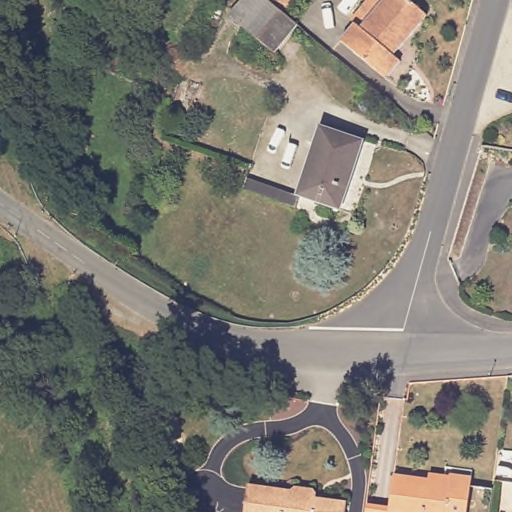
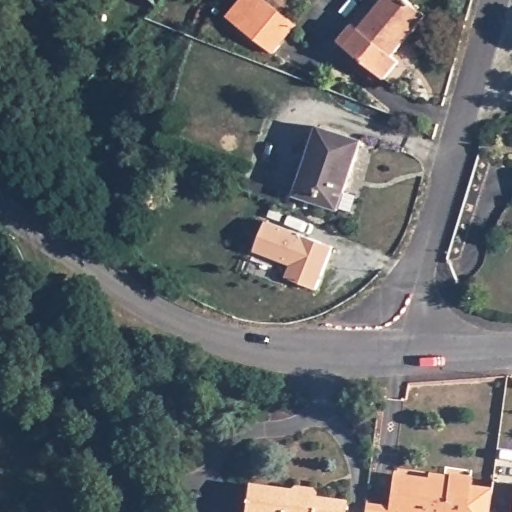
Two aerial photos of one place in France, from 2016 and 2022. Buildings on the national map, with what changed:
unchanged [(158,10),(149,0),(168,0),(158,10)]
unchanged [(275,55),(242,27),(249,19),(237,9),(244,0),(266,0),(299,27),(275,55)]
unchanged [(351,21),(369,0),(406,0),(426,16),(393,57),(400,63),(385,80),(341,43),(356,25),(351,21)]
unchanged [(340,211),(296,195),(320,128),(362,143),(340,211)]
new [(269,218),(335,245),(318,286),(289,275),(294,262),(258,248),(269,218)]
unchanged [(402,512),(403,509),(393,507),(398,471),(434,475),(434,468),(454,470),(475,473),(470,512),(402,512)]
unchanged [(512,512),(508,512),(512,480),(512,512)]
unchanged [(300,488),(316,490),(319,493),(320,497),(320,500),(349,504),(347,512),(249,512),(253,486),(295,492),(300,488)]

